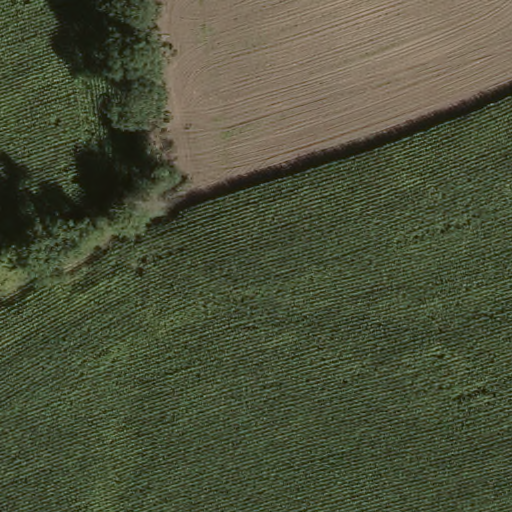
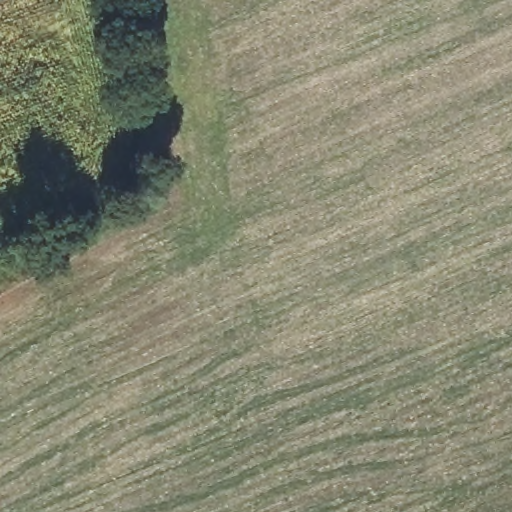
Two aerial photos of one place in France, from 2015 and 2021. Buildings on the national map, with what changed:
[]

